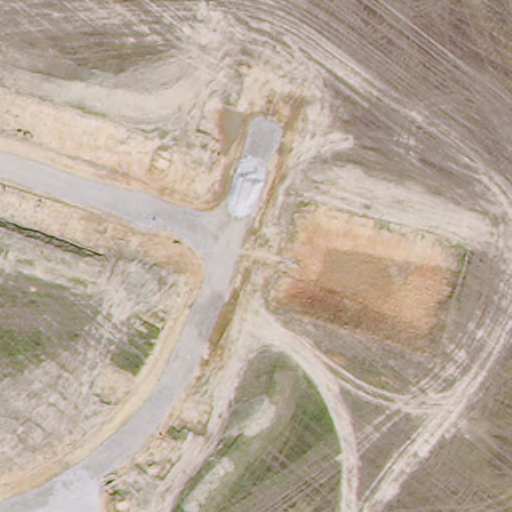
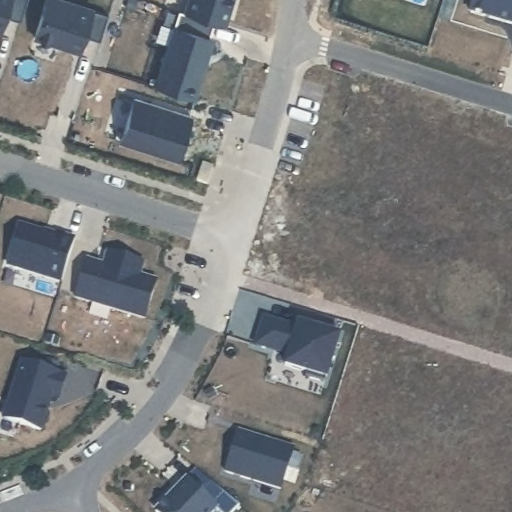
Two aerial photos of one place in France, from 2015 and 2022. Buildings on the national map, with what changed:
new [(19,23),(4,19),(0,32),(0,0),(27,0),(19,23)]
new [(512,25),(469,13),(474,0),(512,0),(512,25)]
new [(62,1),(107,16),(99,42),(83,38),(79,53),(48,43),(62,1)]
new [(214,24),(209,39),(213,40),(194,101),(155,89),(178,13),(214,24)]
new [(133,101),(190,118),(177,161),(120,143),(133,101)]
new [(10,224),(45,235),(46,232),(74,241),(60,284),(0,265),(0,256),(10,224)]
new [(86,260),(103,266),(107,255),(142,266),(138,277),(155,283),(143,320),(74,299),(86,260)]
new [(263,319),(296,329),(310,333),(311,329),(339,337),(324,384),(304,378),(305,374),(284,367),(287,357),(254,346),(263,319)]
new [(21,363),(65,377),(57,401),(50,399),(40,432),(3,421),(21,363)]
new [(237,432),(292,449),(279,491),(224,473),(237,432)]
new [(211,484),(238,507),(234,512),(216,512),(214,511),(214,512),(156,512),(185,481),(195,471),(211,484)]

